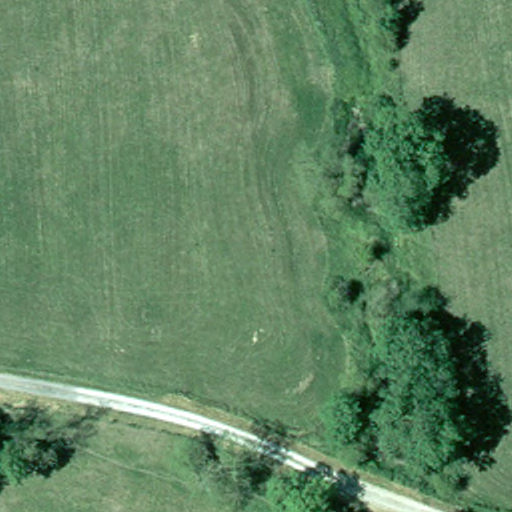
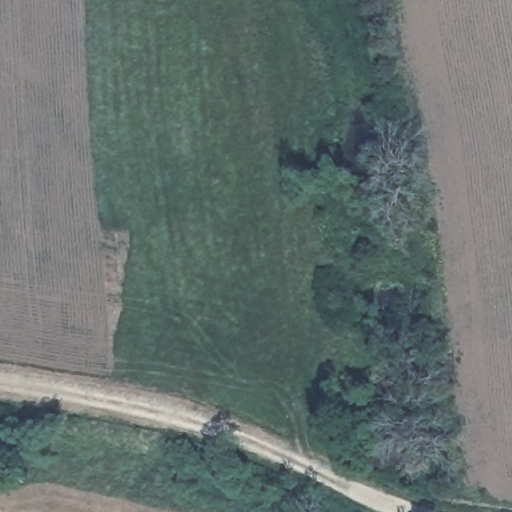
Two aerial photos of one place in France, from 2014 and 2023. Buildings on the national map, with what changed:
unchanged [(462,424),(463,410),(476,411),(474,425),(462,424)]

